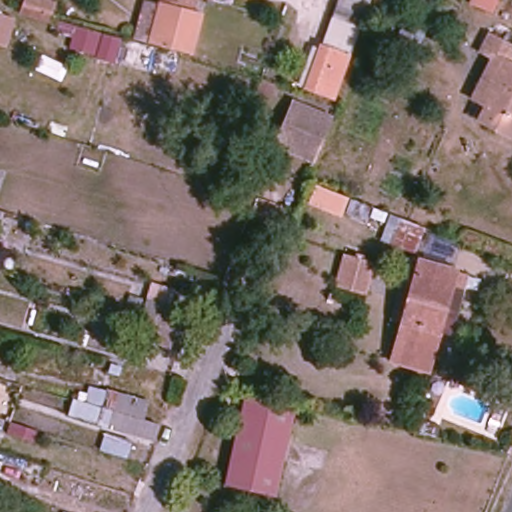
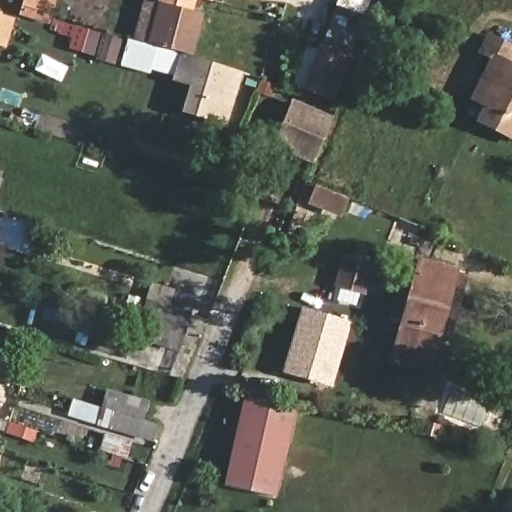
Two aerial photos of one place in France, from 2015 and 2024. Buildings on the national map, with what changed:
unchanged [(17,10),(19,3),(20,0),(54,0),(50,13),(49,19),(17,10)]
unchanged [(151,42),(138,39),(149,0),(197,0),(193,13),(202,16),(192,54),(151,42)]
unchanged [(213,2),(207,0),(214,0),(213,2)]
unchanged [(311,82),(316,68),(316,66),(321,54),(326,40),(329,32),(332,25),(337,12),(341,0),(371,0),(368,7),(363,21),(362,24),(358,35),(353,50),(350,58),(348,63),(343,77),(338,93),(333,105),(311,97),(306,95),(311,82)]
unchanged [(3,46),(0,45),(0,13),(11,17),(3,46)]
unchanged [(182,58),(177,76),(153,69),(152,74),(115,63),(122,39),(182,58)]
unchanged [(480,123),(488,109),(476,102),(498,59),(487,54),(494,41),(512,50),(512,140),(480,123)]
new [(181,54),(244,73),(227,126),(180,113),(188,86),(172,80),(174,75),(177,76),(182,58),(180,58),(181,54)]
unchanged [(279,131),(289,107),(327,122),(311,162),(278,147),(274,146),(279,131)]
unchanged [(79,141),(62,136),(66,122),(83,127),(79,141)]
unchanged [(0,179),(3,180),(0,192),(0,179)]
unchanged [(410,251),(384,242),(394,216),(419,226),(410,251)]
unchanged [(393,352),(395,340),(412,281),(402,278),(409,256),(418,259),(456,270),(452,284),(464,287),(450,334),(437,330),(432,351),(429,362),(393,352)]
unchanged [(337,283),(346,259),(368,266),(360,291),(337,283)]
new [(147,342),(152,322),(158,304),(192,315),(186,334),(180,352),(147,342)]
new [(332,388),(281,374),(301,309),(351,323),(332,388)]
demolished [(127,351),(132,332),(138,314),(172,324),(166,344),(160,361),(127,351)]
unchanged [(97,424),(102,408),(106,393),(135,402),(130,417),(148,422),(142,438),(97,424)]
unchanged [(277,502),(226,489),(247,401),(298,414),(277,502)]

